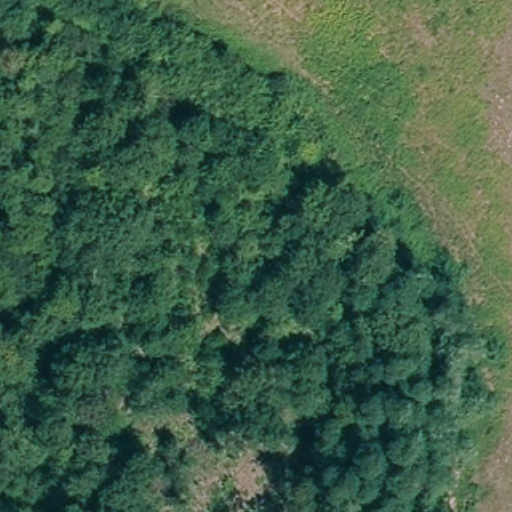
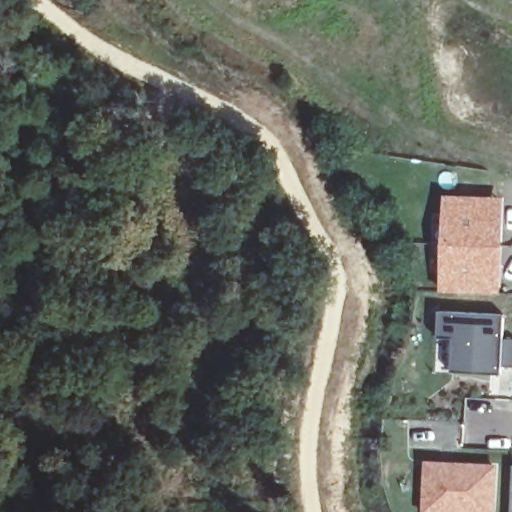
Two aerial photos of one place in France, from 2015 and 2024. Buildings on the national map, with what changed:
unchanged [(173,62),(172,76),(156,74),(157,60),(173,62)]
new [(442,193),(503,196),(501,261),(498,294),(437,291),(442,193)]
new [(453,337),(438,337),(440,310),(506,313),(504,338),(512,338),(512,365),(503,365),(503,373),(483,372),(475,372),(452,371),(453,337)]
new [(452,463),(496,465),(495,512),(465,512),(426,510),(429,462),(445,463),(452,463)]

